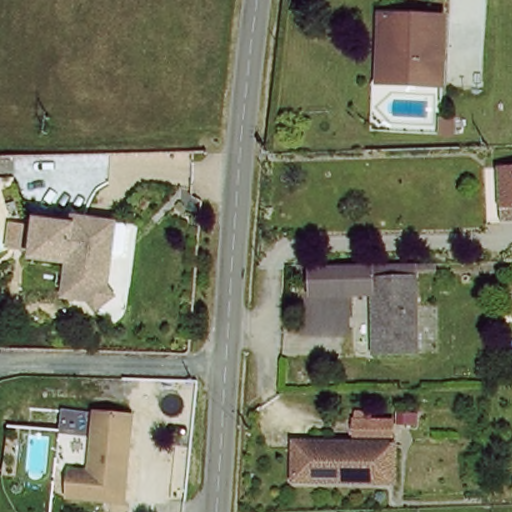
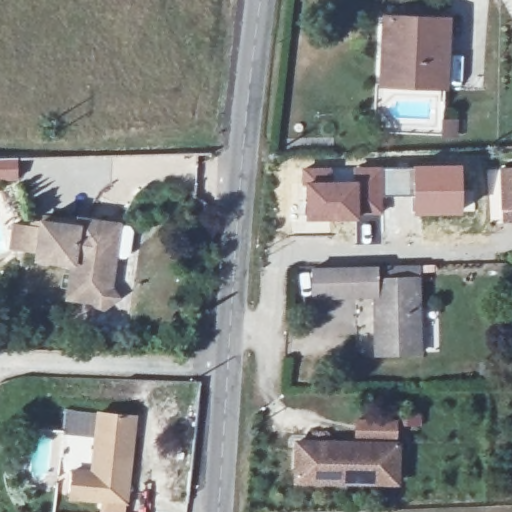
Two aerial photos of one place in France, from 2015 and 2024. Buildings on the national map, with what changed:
unchanged [(451,85),(388,82),(389,56),(390,15),(405,15),(453,16),(451,85)]
unchanged [(499,201),(501,161),(512,161),(512,214),(498,214),(499,201)]
new [(351,179),(351,168),(383,166),(410,164),(461,163),(461,214),(410,215),(410,196),(383,196),(383,215),(359,216),(358,220),(302,222),(299,166),(331,166),(332,180),(351,179)]
unchanged [(120,295),(110,293),(109,308),(78,304),(82,270),(46,266),(50,228),(95,234),(96,226),(128,230),(120,295)]
unchanged [(422,279),(418,353),(371,351),(373,292),(311,291),(312,263),(375,264),(374,278),(422,279)]
unchanged [(135,488),(82,488),(82,460),(101,460),(102,401),(136,402),(135,479),(135,488)]
unchanged [(405,416),(404,433),(364,433),(365,415),(405,416)]
unchanged [(303,436),(389,438),(388,481),(301,479),(303,436)]

